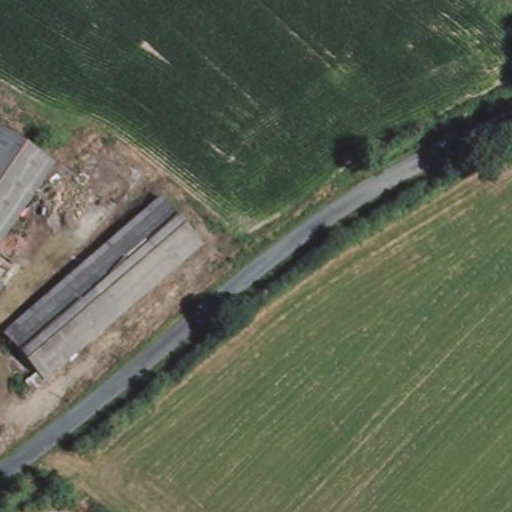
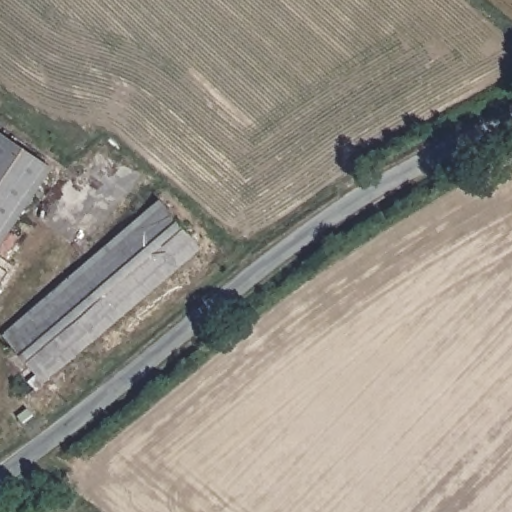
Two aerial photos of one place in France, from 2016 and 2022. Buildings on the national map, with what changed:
unchanged [(54,167),(0,243),(0,128),(54,167)]
unchanged [(152,211),(162,202),(183,227),(202,251),(42,386),(7,342),(2,337),(12,328),(152,211)]

